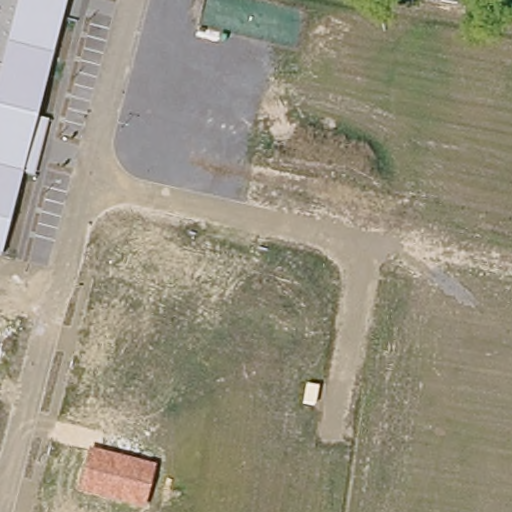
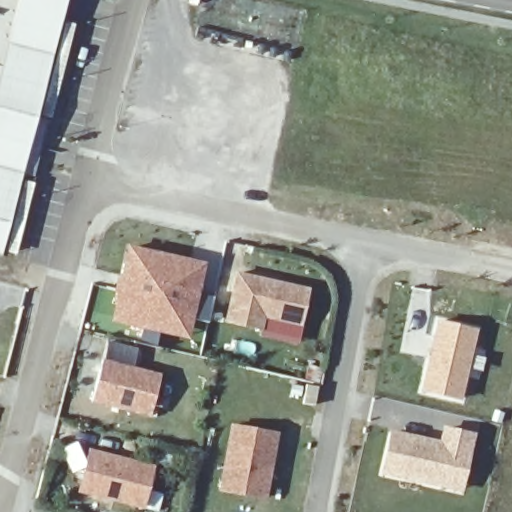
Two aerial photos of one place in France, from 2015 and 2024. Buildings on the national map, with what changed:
unchanged [(37,119),(50,120),(35,178),(22,174),(2,254),(0,253),(0,0),(68,0),(37,119)]
new [(207,263),(190,340),(112,323),(129,244),(207,263)]
new [(242,277),(312,296),(305,329),(268,320),(265,333),(231,325),(242,277)]
new [(478,330),(462,402),(422,394),(438,320),(478,330)]
new [(95,404),(106,363),(164,380),(153,421),(122,412),(112,409),(95,404)]
new [(280,433),(268,501),(219,492),(231,424),(280,433)]
new [(441,441),(444,426),(476,434),(463,492),(383,475),(392,430),(441,441)]
unchanged [(80,494),(90,449),(155,465),(145,509),(80,494)]

